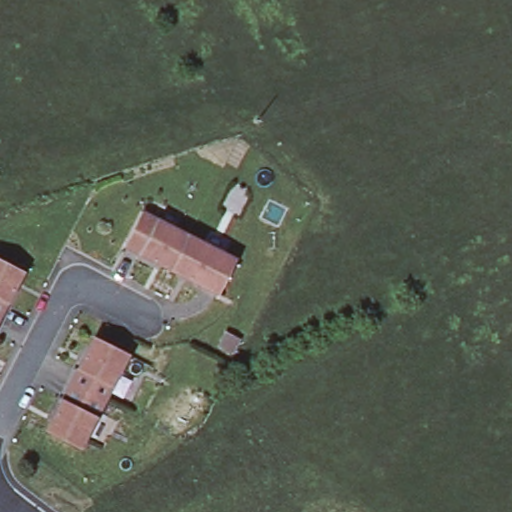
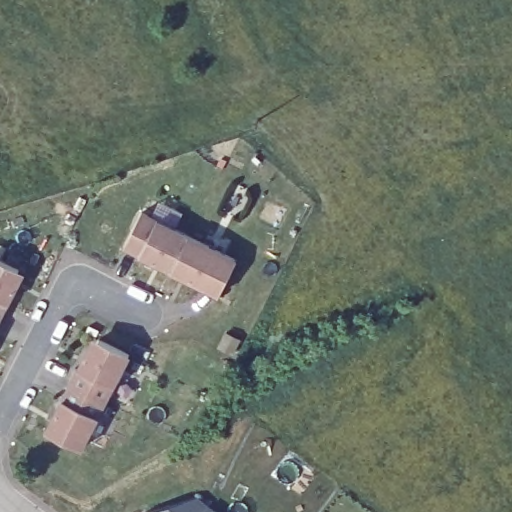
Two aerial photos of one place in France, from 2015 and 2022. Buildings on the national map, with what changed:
unchanged [(190,236),(174,270),(127,246),(144,212),(190,236)]
unchanged [(238,260),(220,293),(174,270),(190,236),(238,260)]
unchanged [(2,319),(0,318),(0,260),(26,273),(2,319)]
unchanged [(0,324),(0,318),(2,319),(0,324)]
unchanged [(98,339),(130,356),(110,397),(77,381),(98,339)]
unchanged [(110,397),(87,441),(55,424),(77,381),(110,397)]
new [(220,512),(145,512),(198,496),(220,512)]

